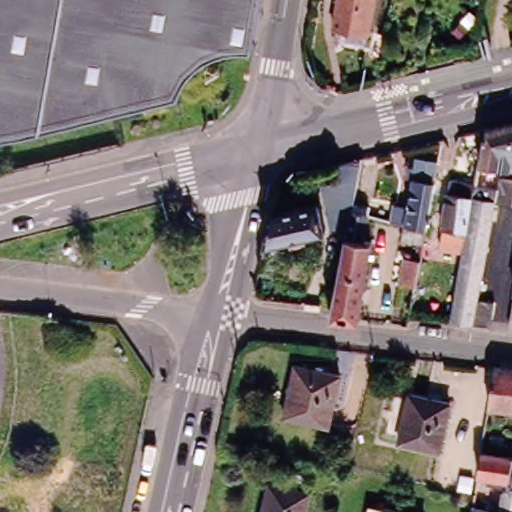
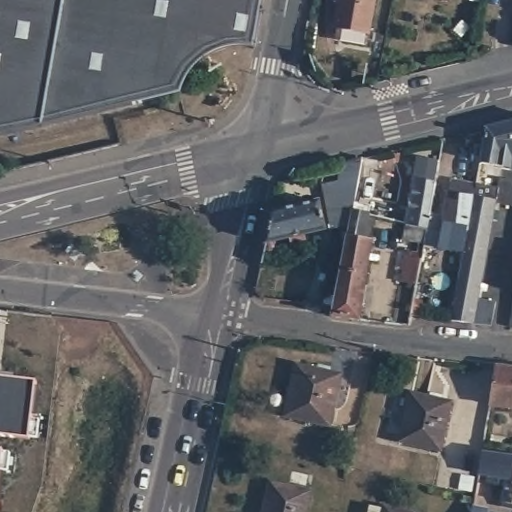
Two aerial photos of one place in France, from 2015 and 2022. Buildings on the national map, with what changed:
unchanged [(250,43),(250,46),(235,44),(225,45),(214,48),(202,54),(192,61),(184,70),(177,83),(150,95),(130,99),(107,105),(86,109),(54,116),(2,127),(0,127),(0,0),(258,0),(250,43)]
unchanged [(334,37),(336,25),(333,24),(337,0),(373,0),(367,30),(365,43),(334,37)]
unchanged [(512,121),(512,167),(475,161),(480,128),(512,121)]
unchanged [(362,315),(332,311),(334,301),(347,230),(350,222),(343,220),(345,215),(350,217),(353,201),(338,200),(328,202),(324,180),(347,174),(344,157),(362,153),(355,192),(372,196),(370,204),(364,234),(374,236),(362,315)]
unchanged [(402,238),(384,232),(387,216),(405,219),(410,190),(399,187),(402,174),(411,176),(413,164),(435,169),(422,242),(420,257),(399,253),(402,238)]
unchanged [(512,181),(507,205),(490,202),(474,299),(490,303),(487,325),(447,321),(462,233),(439,229),(447,180),(471,185),(490,188),(492,177),(512,181)]
unchanged [(320,196),(326,224),(305,229),(307,237),(292,240),(290,233),(267,239),(274,208),(320,196)]
unchanged [(406,256),(421,258),(415,290),(400,287),(406,256)]
unchanged [(511,292),(512,286),(512,292),(511,292)]
unchanged [(507,328),(512,298),(512,328),(507,328)]
unchanged [(512,362),(512,403),(485,400),(492,360),(512,362)]
unchanged [(330,426),(285,415),(297,364),(341,374),(330,426)]
new [(25,435),(0,433),(0,376),(35,380),(25,435)]
unchanged [(435,450),(395,441),(407,392),(446,401),(435,450)]
new [(0,501),(0,446),(5,446),(0,501)]
unchanged [(508,480),(479,473),(483,450),(512,456),(512,503),(504,501),(508,480)]
unchanged [(258,512),(265,480),(305,490),(300,512),(258,512)]
unchanged [(386,507),(408,512),(367,512),(369,503),(386,507)]
unchanged [(487,507),(486,512),(472,512),(473,504),(487,507)]

